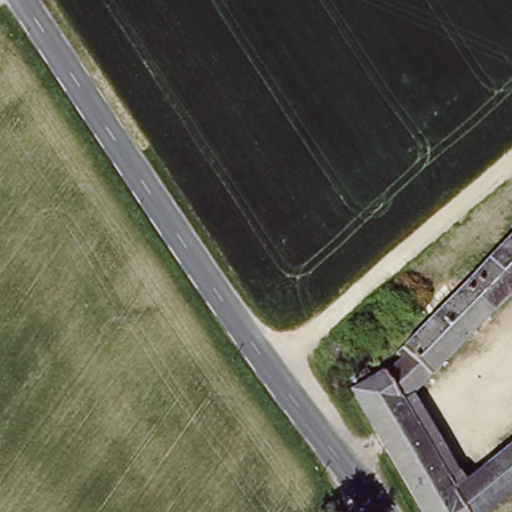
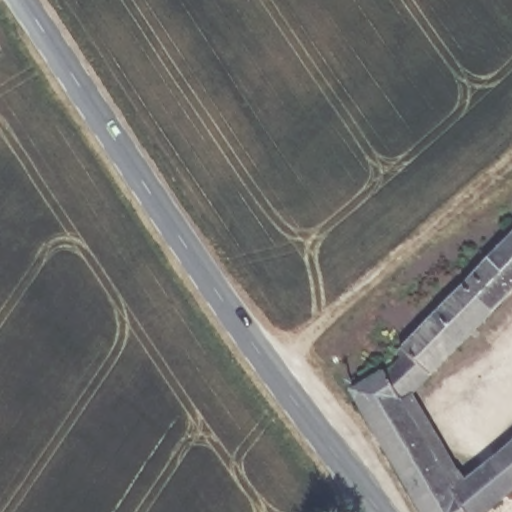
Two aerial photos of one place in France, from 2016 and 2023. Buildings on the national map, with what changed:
unchanged [(502,225),(512,213),(512,234),(502,225)]
unchanged [(492,313),(464,285),(512,236),(512,293),(492,313)]
unchanged [(466,341),(437,312),(464,285),(492,313),(466,341)]
unchanged [(402,357),(406,354),(402,348),(437,312),(466,341),(444,363),(421,386),(396,363),(402,357)]
unchanged [(379,372),(385,368),(388,370),(396,363),(421,386),(406,401),(459,487),(474,512),(426,512),(354,389),(368,379),(379,372)]
unchanged [(512,443),(512,493),(489,512),(474,512),(459,487),(512,443)]

